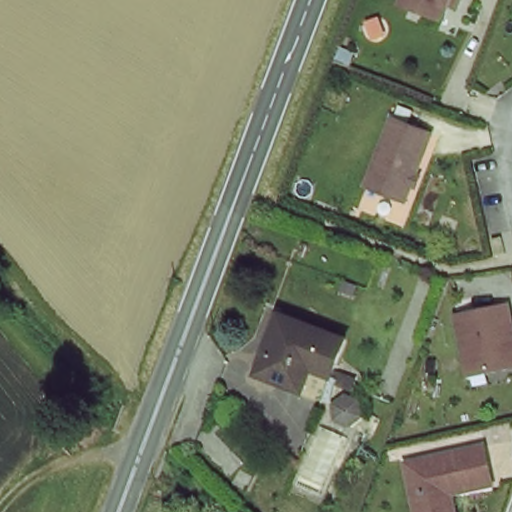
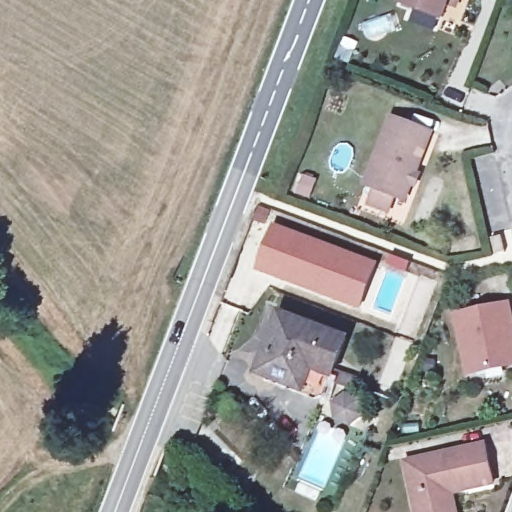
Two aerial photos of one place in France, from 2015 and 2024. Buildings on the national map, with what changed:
unchanged [(397,4),(399,0),(447,0),(439,20),(397,4)]
unchanged [(369,187),(393,123),(433,137),(408,202),(369,187)]
unchanged [(508,220),(511,237),(501,239),(498,222),(508,220)]
new [(256,269),(273,224),(377,263),(360,309),(256,269)]
unchanged [(469,374),(456,315),(508,304),(512,325),(512,365),(508,366),(469,374)]
unchanged [(324,391),(257,369),(277,310),(344,333),(324,391)]
unchanged [(395,461),(474,443),(483,482),(442,491),(447,512),(407,512),(395,461)]

